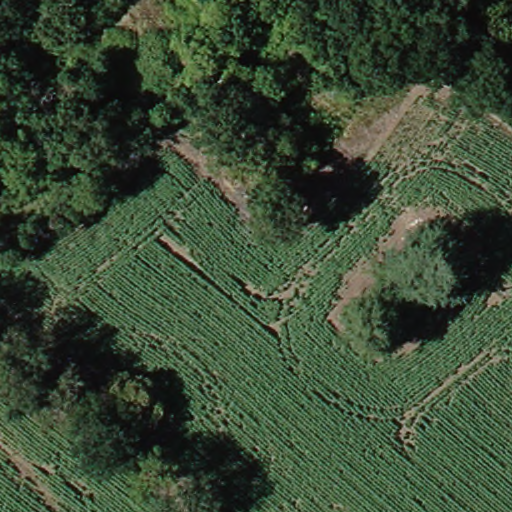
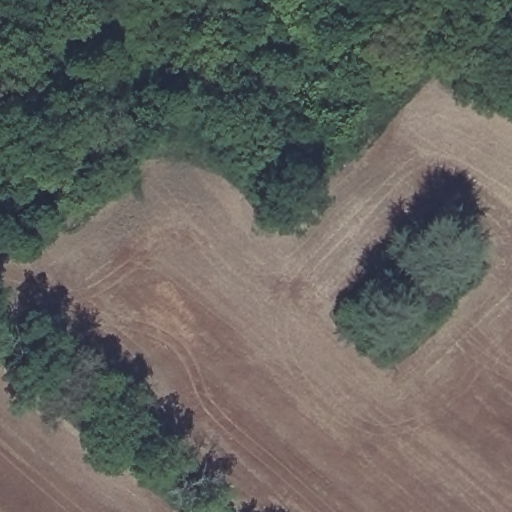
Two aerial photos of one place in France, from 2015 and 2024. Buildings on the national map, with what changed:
unchanged [(195,0),(225,0),(211,15),(195,0)]
unchanged [(232,34),(211,15),(225,0),(262,0),(232,34)]
unchanged [(310,140),(316,145),(280,175),(192,88),(189,84),(225,50),(310,140)]

